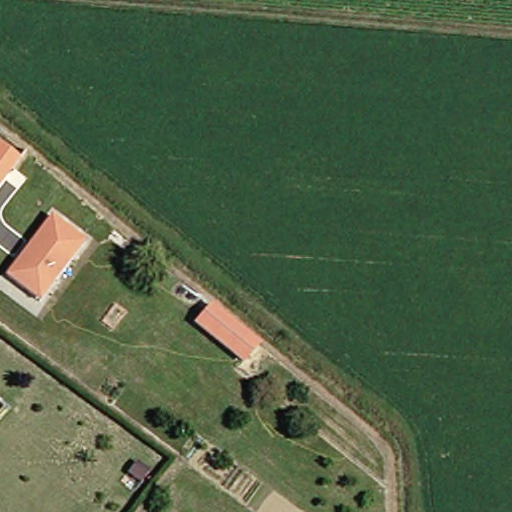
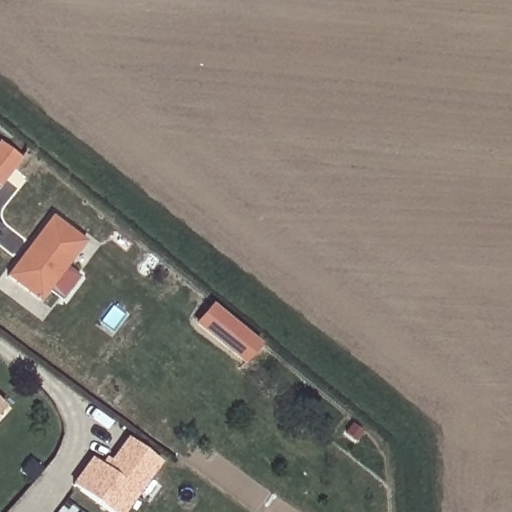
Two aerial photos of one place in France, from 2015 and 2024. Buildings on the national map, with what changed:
unchanged [(18,157),(0,185),(0,144),(18,157)]
unchanged [(90,241),(46,302),(11,277),(24,261),(34,247),(55,217),(90,241)]
unchanged [(200,325),(214,307),(261,346),(246,363),(200,325)]
new [(100,464),(106,457),(111,461),(127,437),(162,462),(126,512),(110,512),(72,485),(92,457),(100,464)]

